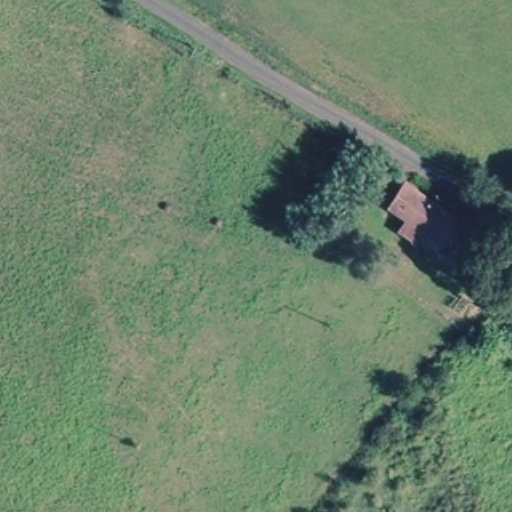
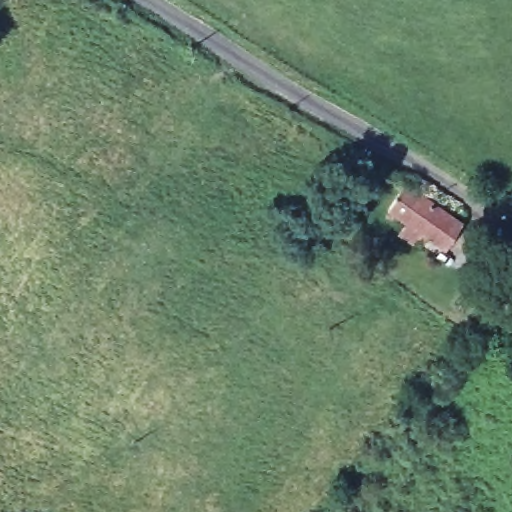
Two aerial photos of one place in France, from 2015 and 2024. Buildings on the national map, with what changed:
unchanged [(407,225),(413,217),(397,205),(417,180),(467,222),(451,245),(430,229),(424,237),(407,225)]

